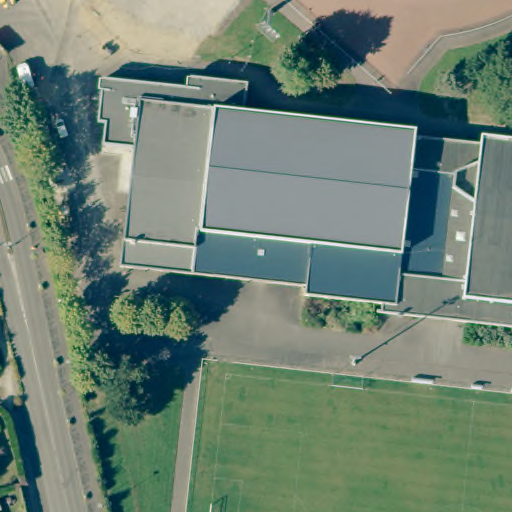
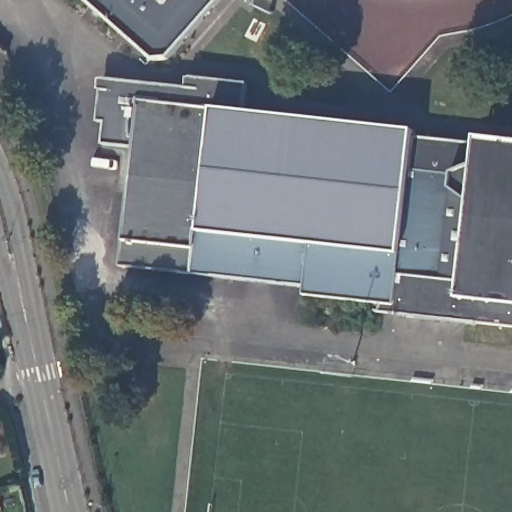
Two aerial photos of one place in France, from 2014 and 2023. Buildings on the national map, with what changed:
new [(168,2),(170,0),(222,0),(168,60),(154,60),(84,0),(165,0),(168,2)]
unchanged [(383,311),(384,303),(307,294),(308,284),(271,280),(252,278),(162,268),(163,265),(151,263),(150,266),(123,263),(126,236),(127,236),(137,146),(106,142),(108,120),(101,120),(104,86),(113,87),(114,78),(106,77),(106,76),(202,86),(203,77),(194,76),(194,75),(251,81),(248,110),(390,126),(401,127),(418,129),(418,134),(445,137),(470,140),(492,143),(492,151),(512,145),(512,325),(465,320),(424,315),(383,311)]

